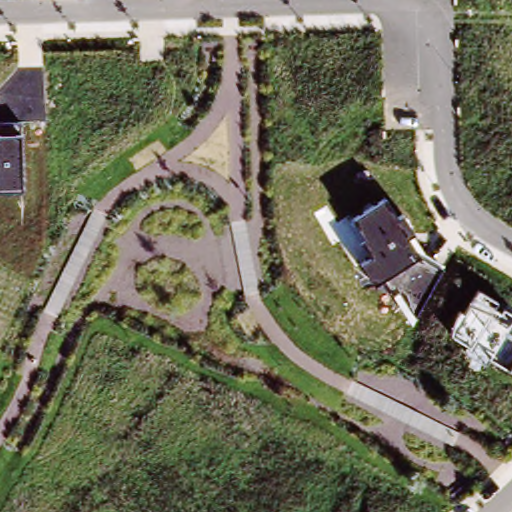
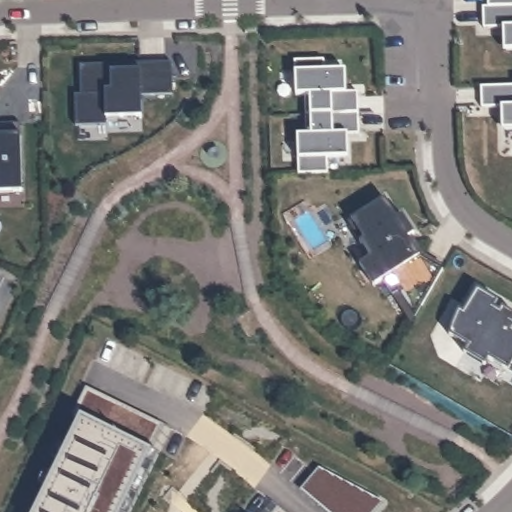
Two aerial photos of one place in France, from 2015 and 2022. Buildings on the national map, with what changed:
new [(486,5),(485,0),(512,0),(512,5),(486,5)]
new [(501,26),(481,27),(481,5),(486,5),(512,5),(512,48),(504,49),(501,49),(501,26)]
new [(294,59),(323,58),(323,68),(341,68),(343,90),(357,89),(358,132),(344,133),(344,155),(326,155),(326,171),(298,172),(296,132),(304,131),(303,92),(294,93),(294,59)]
new [(78,95),(78,63),(108,61),(108,68),(136,67),(136,60),(167,60),(168,92),(136,93),(137,114),(101,115),(102,123),(77,124),(76,95),(78,95)]
new [(499,105),(479,106),(479,85),(512,84),(512,128),(502,128),(500,128),(499,105)]
unchanged [(21,188),(0,189),(0,121),(19,120),(21,188)]
unchanged [(393,217),(402,213),(414,232),(421,251),(443,264),(409,324),(384,279),(372,285),(359,263),(372,257),(351,218),(383,200),(393,217)]
unchanged [(497,300),(493,307),(499,311),(502,307),(512,312),(512,371),(508,368),(489,357),(486,361),(465,349),(468,344),(451,332),(459,309),(464,311),(478,289),(497,300)]
new [(76,417),(70,414),(83,387),(159,424),(146,451),(154,455),(127,512),(35,512),(76,417)]
new [(384,501),(374,512),(328,512),(301,489),(319,467),(384,501)]
new [(276,506),(283,512),(271,512),(276,506)]

